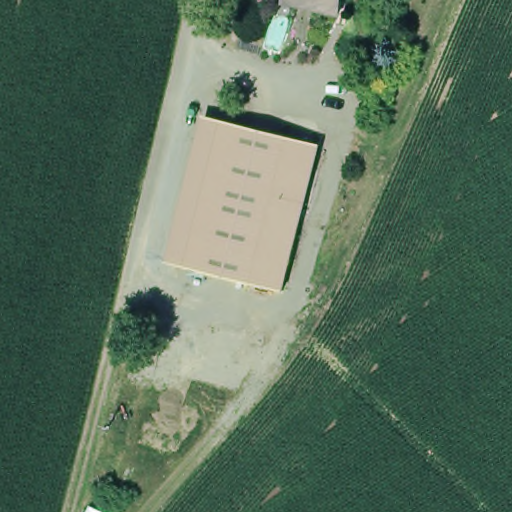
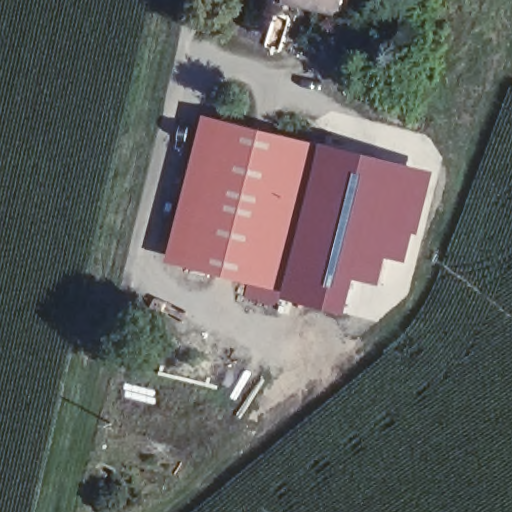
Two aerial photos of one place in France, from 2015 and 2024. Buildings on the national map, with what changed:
unchanged [(293,0),(332,0),(330,8),(293,0)]
unchanged [(181,261),(162,257),(199,110),(218,115),(181,261)]
unchanged [(315,139),(278,285),(181,261),(218,115),(315,139)]
new [(430,168),(407,266),(380,257),(377,289),(348,281),(340,317),(274,301),(278,285),(315,139),(430,168)]

